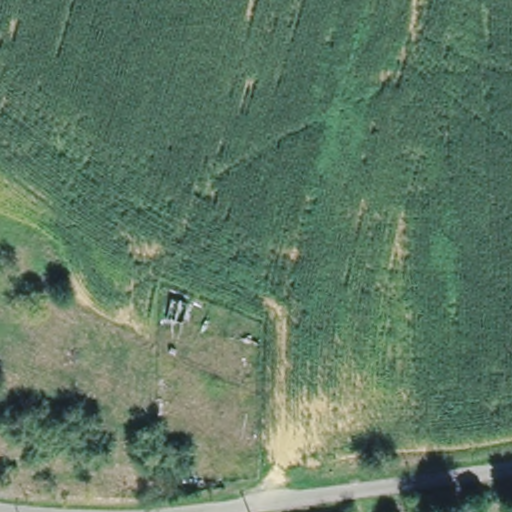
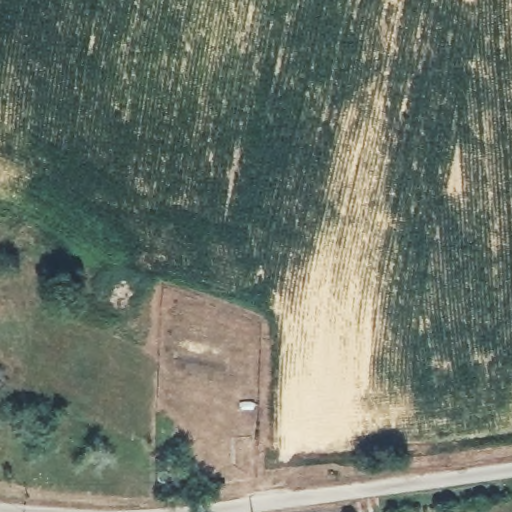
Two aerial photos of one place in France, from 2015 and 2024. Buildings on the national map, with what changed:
[]

